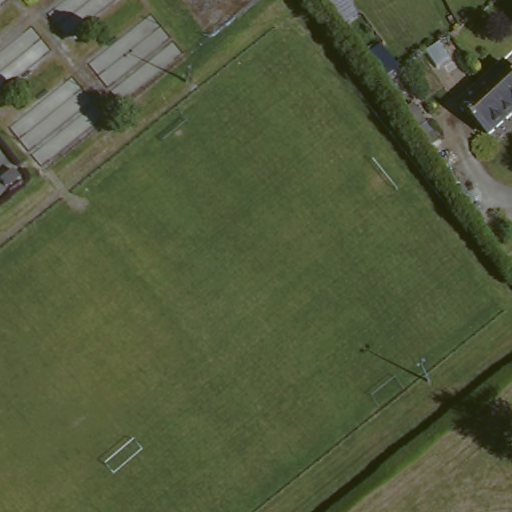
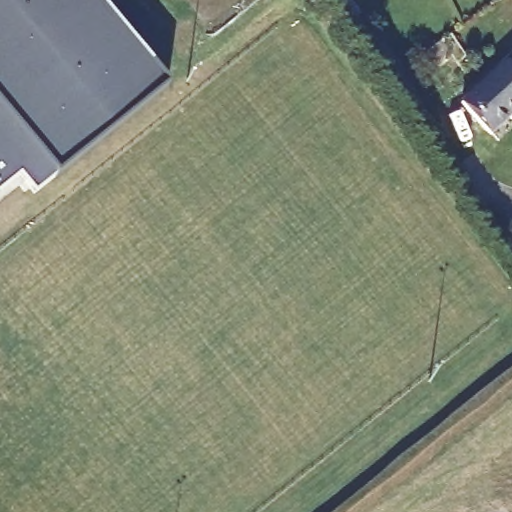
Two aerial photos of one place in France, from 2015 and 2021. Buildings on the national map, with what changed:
new [(167,89),(166,88),(55,177),(34,193),(20,176),(0,193),(0,0),(96,0),(167,89)]
unchanged [(343,23),(327,0),(347,0),(357,14),(343,23)]
unchanged [(512,130),(497,143),(474,117),(461,103),(505,64),(512,72),(512,130)]
unchanged [(426,121),(417,128),(404,110),(413,103),(426,121)]
unchanged [(444,138),(433,147),(420,129),(430,120),(444,138)]
demolished [(10,175),(16,183),(4,192),(0,188),(0,183),(10,175)]

